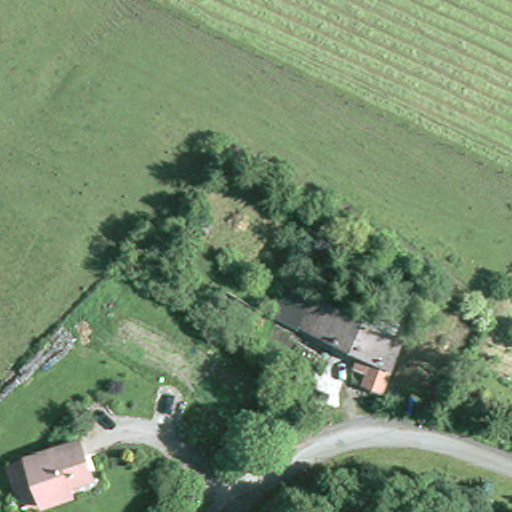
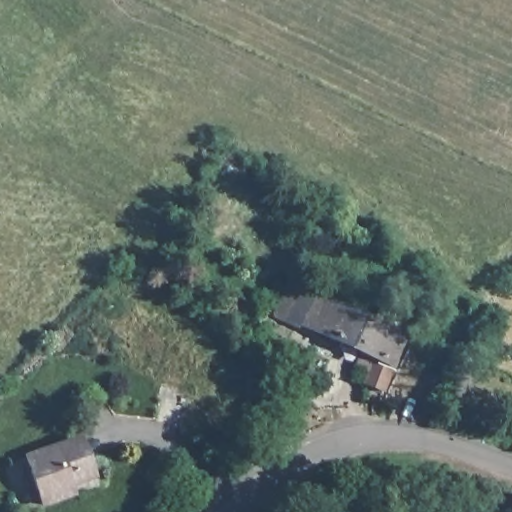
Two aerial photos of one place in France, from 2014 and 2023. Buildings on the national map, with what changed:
unchanged [(381,387),(365,381),(369,370),(355,365),(361,350),(297,324),(296,328),(274,318),(290,284),(403,332),(381,387)]
unchanged [(66,496),(43,503),(28,455),(78,438),(90,477),(73,481),(77,493),(66,496)]

